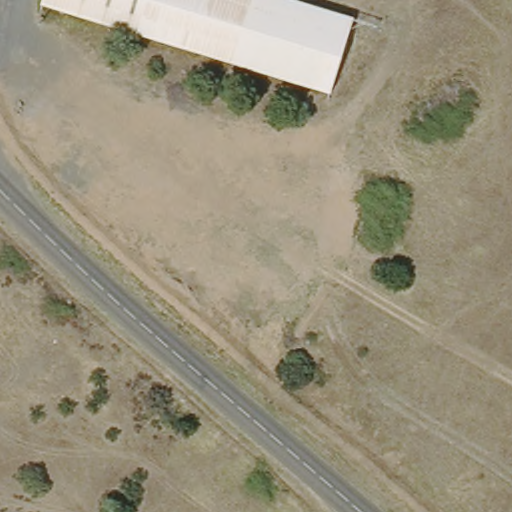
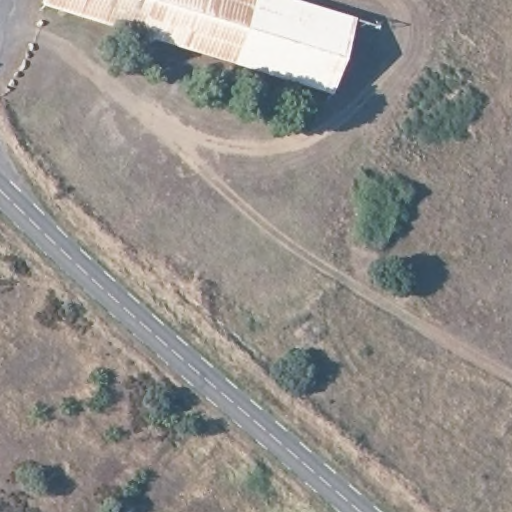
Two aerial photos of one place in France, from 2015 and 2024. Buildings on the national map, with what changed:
unchanged [(334,92),(334,94),(43,7),(45,0),(304,0),(356,15),(334,92)]

